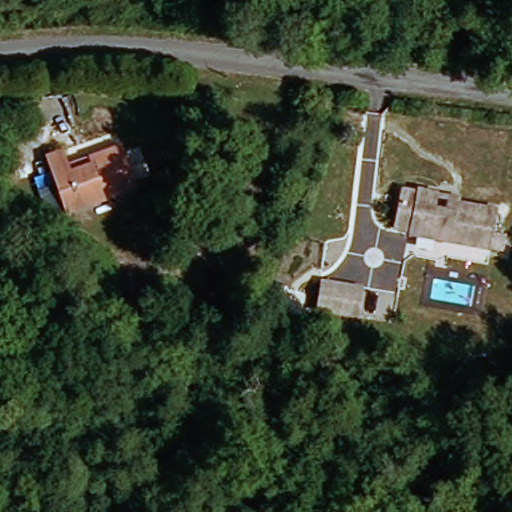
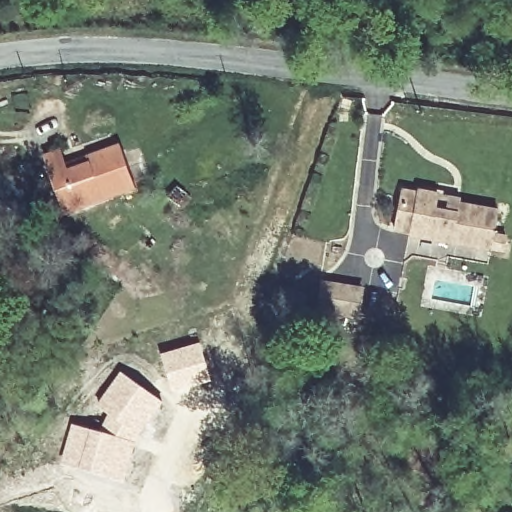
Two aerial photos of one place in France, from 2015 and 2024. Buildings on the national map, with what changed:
unchanged [(135,195),(62,217),(45,160),(60,155),(64,166),(88,160),(122,149),(135,195)]
unchanged [(488,250),(406,235),(406,229),(394,227),(402,189),(417,192),(418,185),(437,189),(434,205),(457,209),(459,199),(497,207),(488,250)]
unchanged [(328,317),(333,289),(358,292),(372,295),(368,323),(353,321),(328,317)]
new [(199,340),(212,385),(175,398),(159,352),(199,340)]
new [(122,371),(165,403),(138,445),(104,428),(102,427),(109,414),(97,405),(122,371)]
new [(72,424),(102,432),(104,428),(138,445),(127,483),(61,465),(72,424)]

